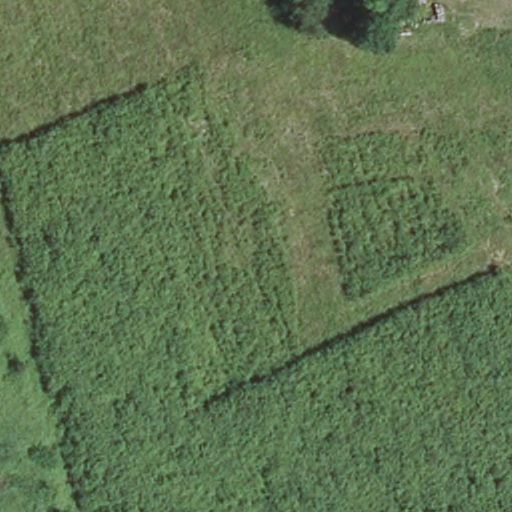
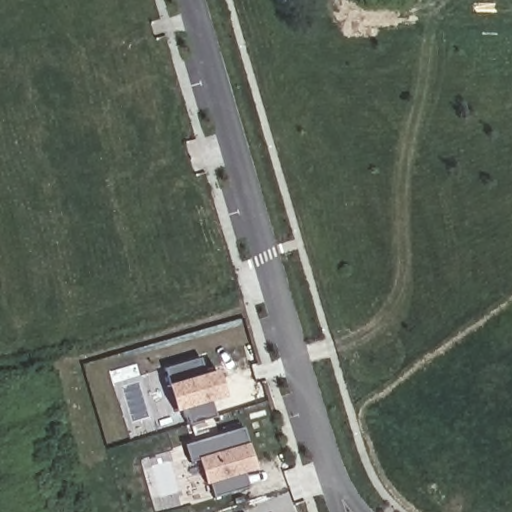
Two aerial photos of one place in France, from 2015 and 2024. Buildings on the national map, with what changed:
new [(182,410),(174,412),(166,385),(164,370),(199,359),(201,375),(217,370),(225,397),(208,402),(212,417),(185,423),(182,410)]
new [(242,428),(246,443),(248,443),(256,470),(243,474),(247,487),(212,497),(209,485),(206,486),(197,461),(188,463),(184,445),(242,428)]

